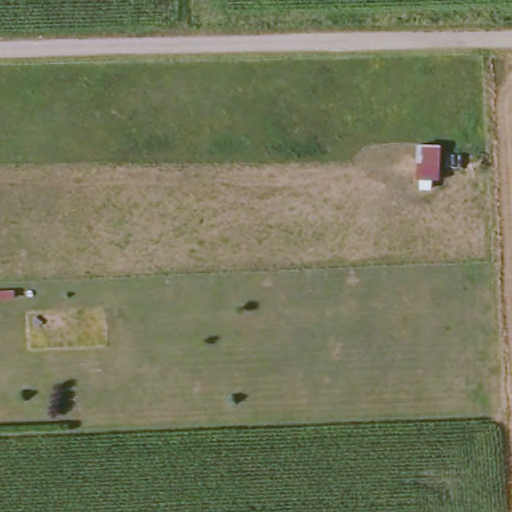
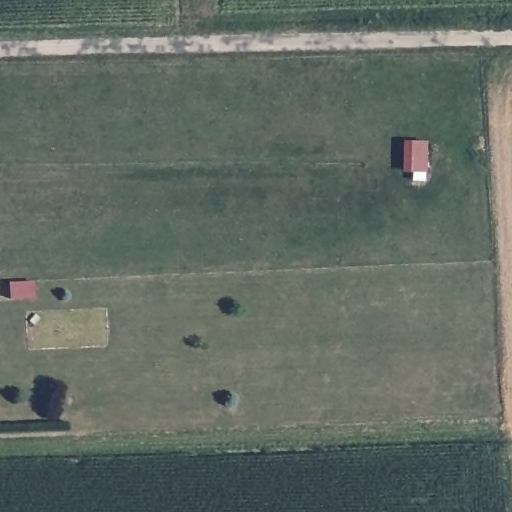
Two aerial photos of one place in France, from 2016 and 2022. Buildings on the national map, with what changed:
unchanged [(433,138),(435,175),(413,178),(412,142),(433,138)]

